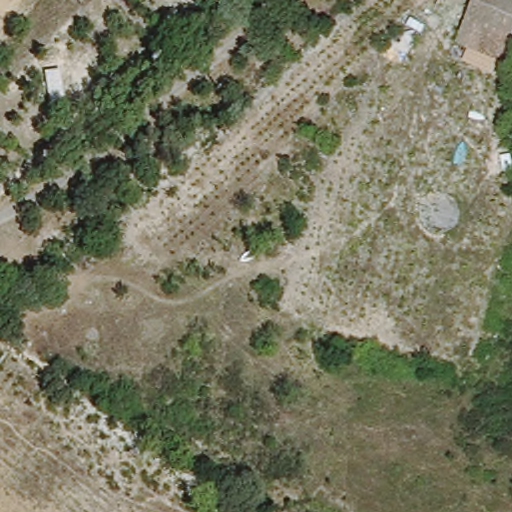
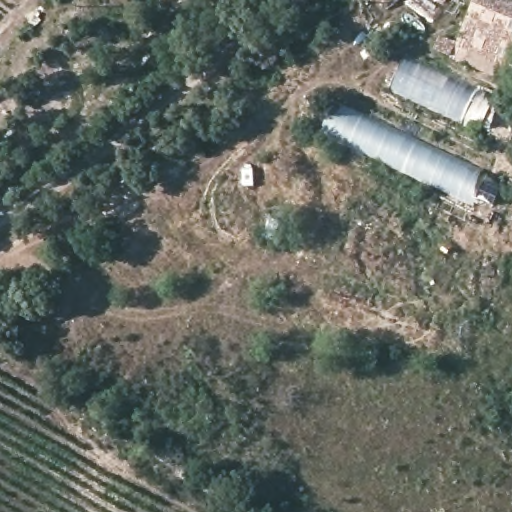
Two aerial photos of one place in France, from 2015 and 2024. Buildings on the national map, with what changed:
unchanged [(509,65),(456,42),(473,0),(512,0),(512,57),(509,65)]
new [(462,121),(391,88),(405,57),(497,100),(488,125),(462,121)]
new [(323,132),(339,103),(487,176),(474,204),(323,132)]

